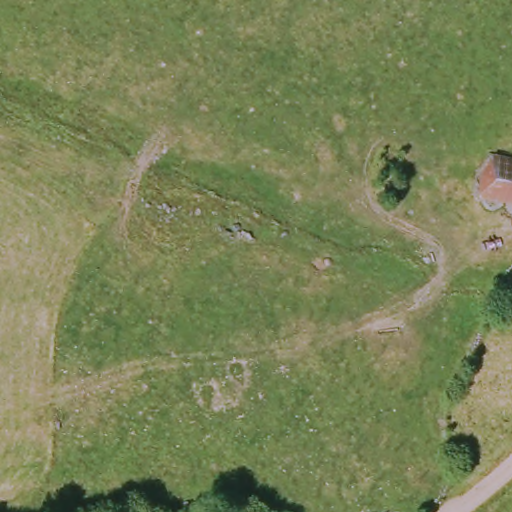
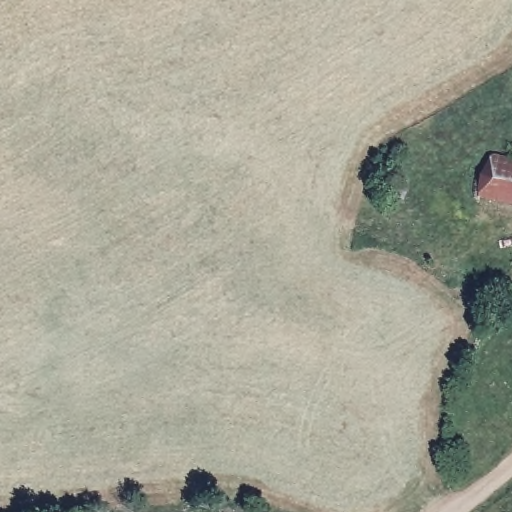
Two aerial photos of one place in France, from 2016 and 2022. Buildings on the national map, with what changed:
unchanged [(490,160),(512,164),(512,207),(476,201),(490,160)]

